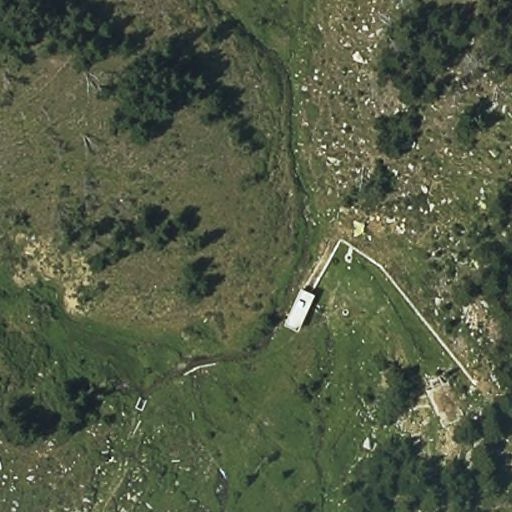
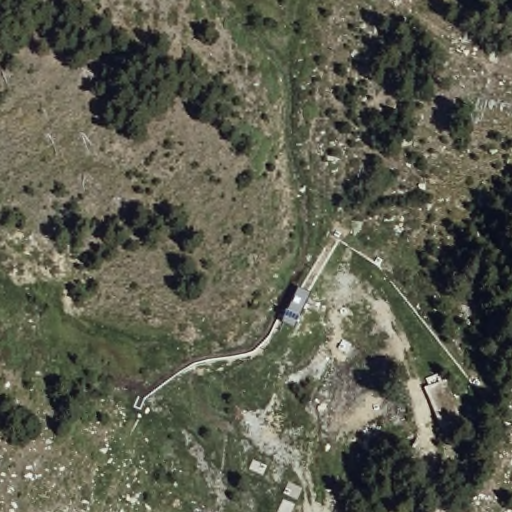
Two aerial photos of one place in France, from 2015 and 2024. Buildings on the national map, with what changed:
unchanged [(282,325),(297,287),(313,295),(296,332),(282,325)]
unchanged [(430,388),(425,378),(439,372),(443,385),(455,379),(470,418),(439,427),(420,390),(430,388)]

